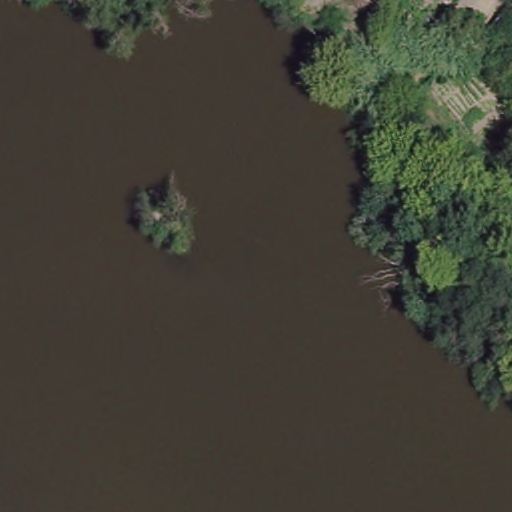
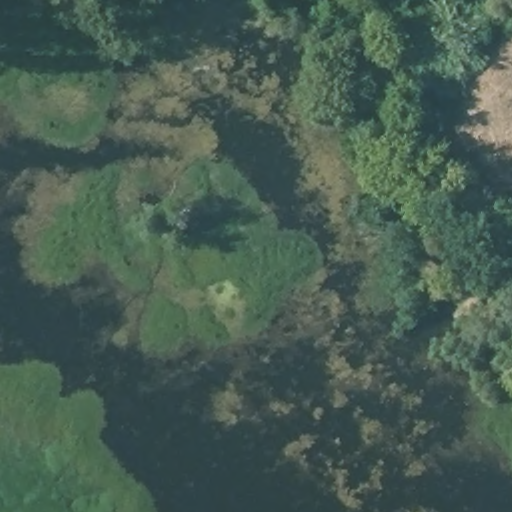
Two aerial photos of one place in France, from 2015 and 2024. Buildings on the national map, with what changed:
[]

